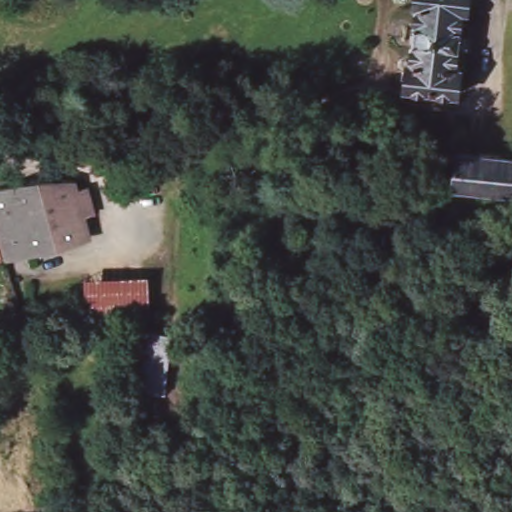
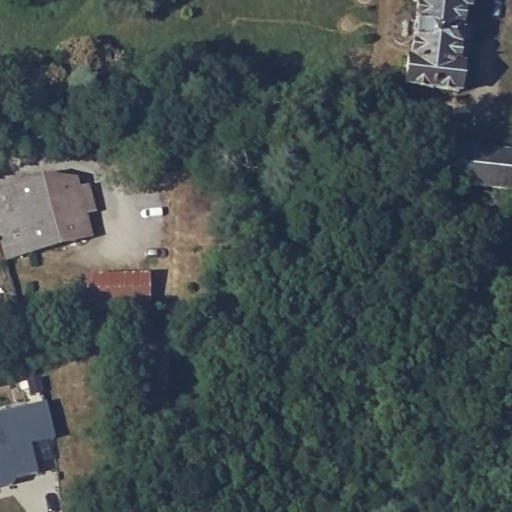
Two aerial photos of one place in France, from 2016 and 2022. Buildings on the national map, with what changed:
unchanged [(412,60),(418,5),(415,4),(415,0),(469,0),(468,11),(463,10),(457,66),(460,67),(457,94),(404,88),(408,60),(412,60)]
unchanged [(457,156),(512,161),(512,198),(511,197),(454,193),(457,156)]
unchanged [(71,182),(73,191),(84,190),(90,212),(80,215),(83,227),(93,225),(95,235),(0,260),(0,188),(34,180),(71,182)]
unchanged [(149,275),(150,312),(131,312),(86,315),(85,277),(149,275)]
unchanged [(136,392),(144,332),(171,335),(165,395),(136,392)]
new [(55,435),(30,442),(36,471),(16,477),(11,485),(0,488),(0,413),(46,402),(55,435)]

